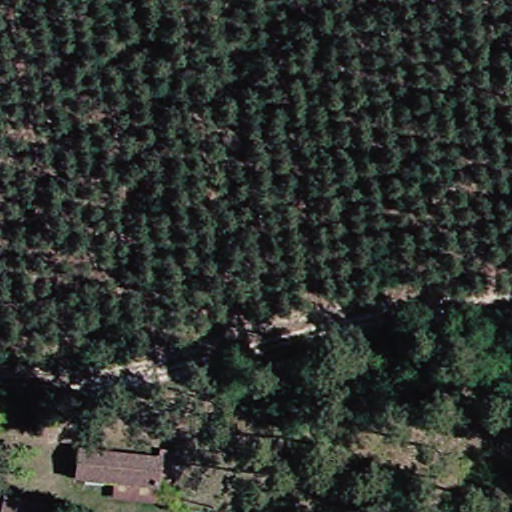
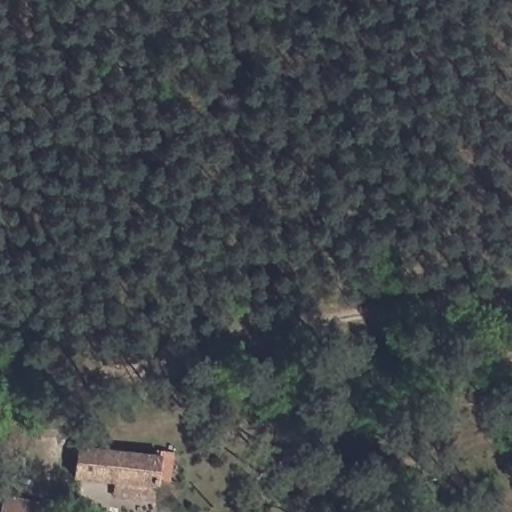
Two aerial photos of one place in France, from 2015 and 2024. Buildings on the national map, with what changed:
unchanged [(177,488),(75,485),(76,457),(176,459),(177,488)]
unchanged [(8,512),(9,503),(56,505),(56,512),(8,512)]

